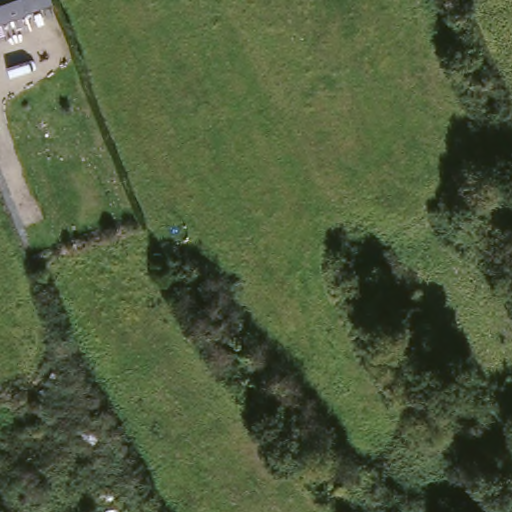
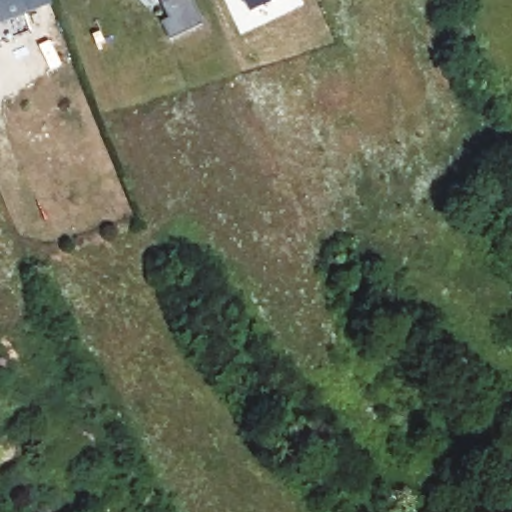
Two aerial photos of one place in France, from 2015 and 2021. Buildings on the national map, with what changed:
unchanged [(0,21),(0,0),(52,0),(32,8),(0,21)]
new [(170,36),(161,17),(168,14),(162,0),(193,0),(203,20),(170,36)]
new [(246,0),(265,0),(249,8),(246,0)]

